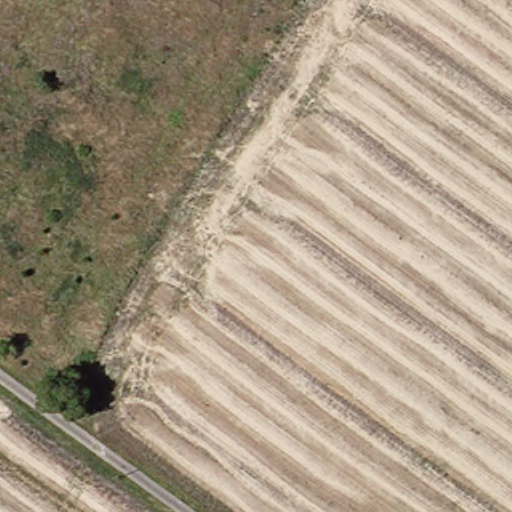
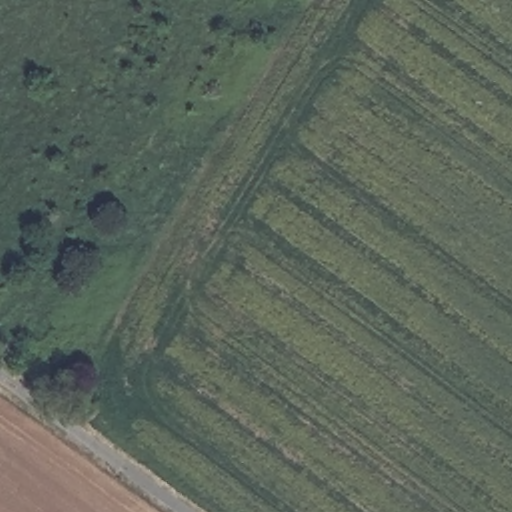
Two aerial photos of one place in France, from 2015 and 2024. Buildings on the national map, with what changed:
[]

